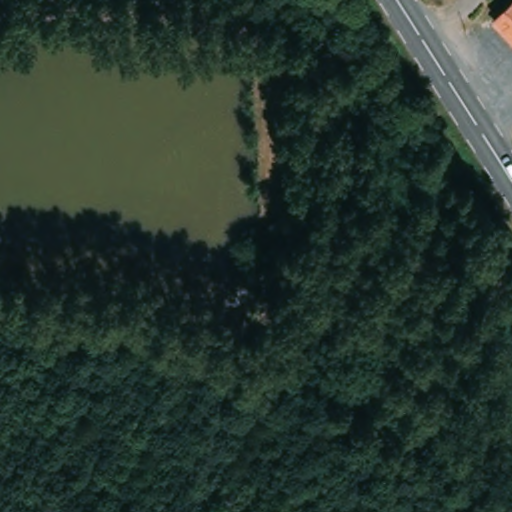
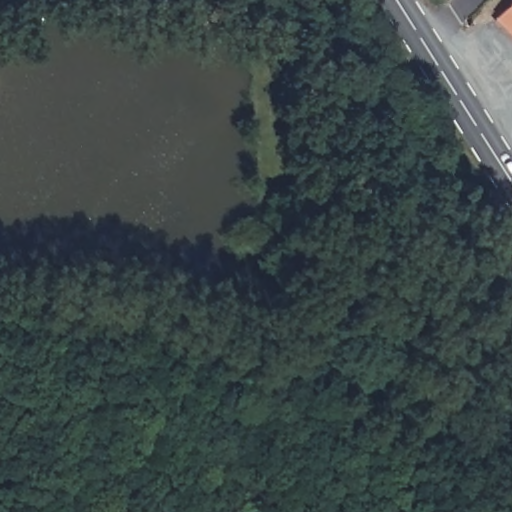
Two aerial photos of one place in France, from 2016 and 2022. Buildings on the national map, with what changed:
unchanged [(512,0),(512,42),(487,19),(508,0),(512,0)]

